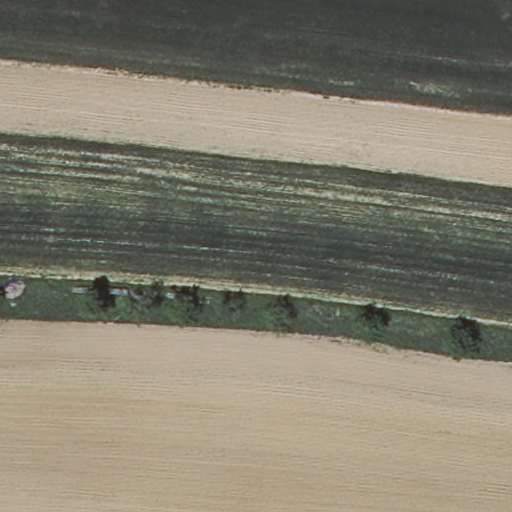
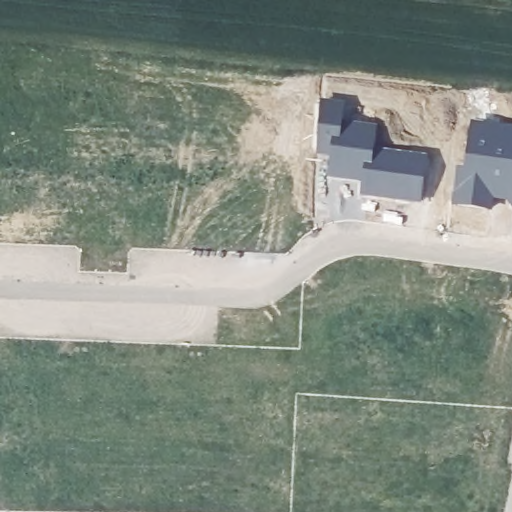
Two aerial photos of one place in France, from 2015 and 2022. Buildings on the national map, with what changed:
new [(342,102),(340,118),(378,121),(374,149),(428,154),(422,202),(360,195),(362,182),(326,176),(328,156),(317,153),(321,99),(342,102)]
new [(512,123),(512,206),(508,200),(490,198),(490,208),(452,204),(457,164),(463,164),(472,119),(512,123)]

